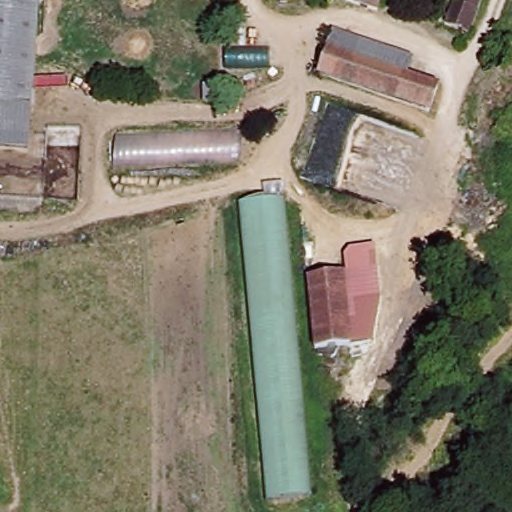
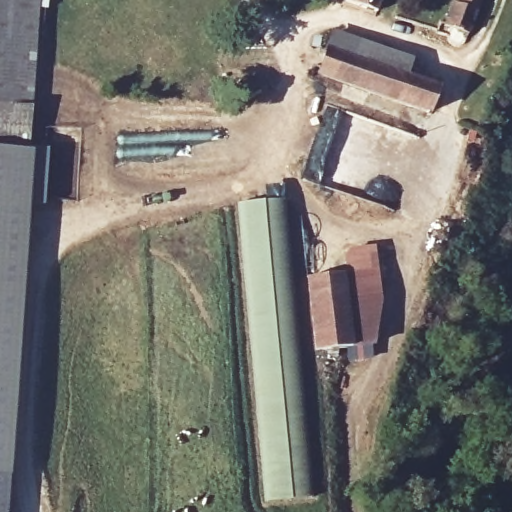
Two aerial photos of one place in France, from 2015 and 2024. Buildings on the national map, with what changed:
unchanged [(28,110),(0,108),(0,0),(38,0),(31,110),(28,110)]
unchanged [(347,0),(381,0),(378,12),(347,0)]
unchanged [(489,0),(465,56),(437,43),(442,30),(447,31),(456,12),(462,14),(467,0),(489,0)]
unchanged [(405,62),(398,76),(433,92),(421,119),(317,72),(336,32),(405,62)]
unchanged [(25,152),(0,151),(0,108),(28,110),(25,152)]
unchanged [(241,132),(242,170),(116,175),(114,137),(241,132)]
new [(32,152),(10,512),(0,512),(0,151),(25,152),(32,152)]
unchanged [(257,506),(244,206),(292,205),(301,412),(304,502),(280,505),(257,506)]
unchanged [(319,347),(311,347),(308,272),(345,271),(345,249),(375,245),(380,297),(372,342),(347,345),(319,347)]

